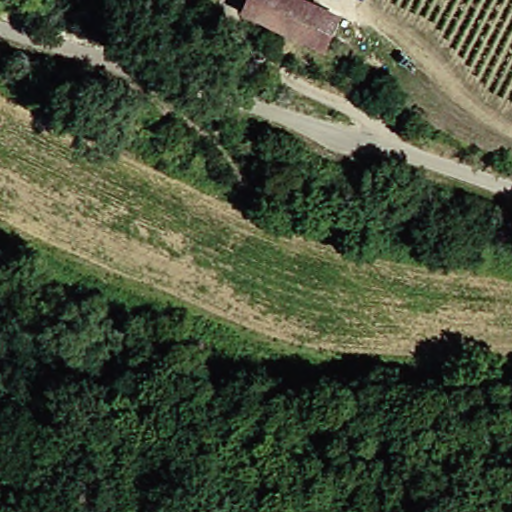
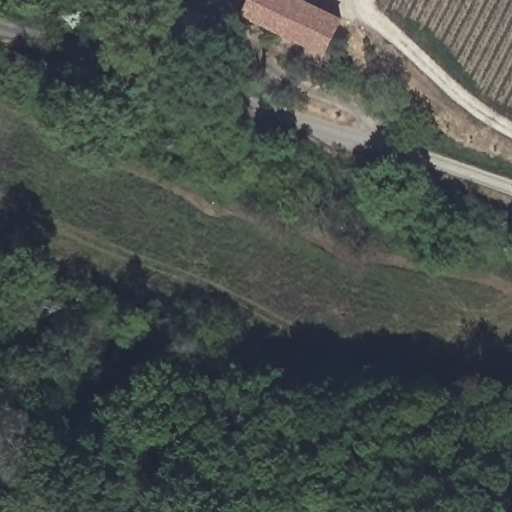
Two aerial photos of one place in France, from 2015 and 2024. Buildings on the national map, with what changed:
unchanged [(325,41),(321,51),(236,14),(242,0),(287,0),(325,17),(346,26),(337,49),(325,41)]

